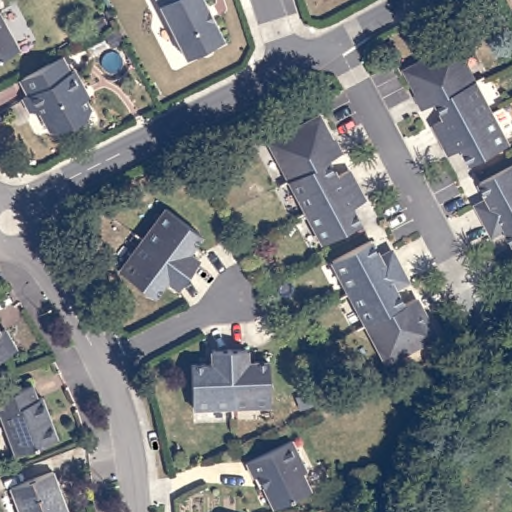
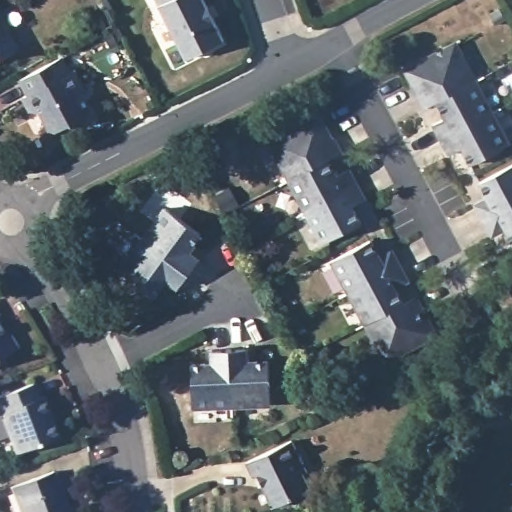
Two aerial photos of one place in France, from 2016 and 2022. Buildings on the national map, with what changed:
unchanged [(187,59),(156,0),(204,0),(225,39),(187,59)]
unchanged [(0,60),(0,18),(17,50),(0,60)]
unchanged [(420,98),(423,96),(411,74),(462,48),(481,85),(442,106),(428,113),(420,98)]
unchanged [(59,58),(67,73),(71,71),(81,89),(77,91),(83,101),(86,108),(84,116),(81,118),(79,120),(69,125),(65,124),(63,125),(52,131),(47,130),(37,113),(27,112),(20,99),(27,95),(18,80),(59,58)]
unchanged [(481,85),(497,117),(446,144),(438,130),(451,123),(442,106),(481,85)]
unchanged [(497,117),(512,145),(512,150),(475,169),(467,153),(454,159),(446,144),(497,117)]
unchanged [(273,145),(323,120),(334,143),(337,141),(344,155),(344,158),(332,164),(293,184),(273,145)]
unchanged [(332,164),(340,179),(353,172),(361,189),(309,215),(293,184),(332,164)]
unchanged [(481,204),(493,198),(484,182),(512,168),(512,207),(488,219),(481,204)]
unchanged [(361,189),(369,204),(356,210),(365,227),(334,242),(326,247),(309,215),(361,189)]
unchanged [(512,207),(512,234),(509,229),(497,235),(488,219),(512,207)]
unchanged [(169,208),(204,235),(192,251),(202,259),(192,272),(147,239),(169,208)]
unchanged [(192,272),(181,287),(171,279),(158,297),(122,270),(147,239),(192,272)]
unchanged [(330,264),(369,244),(377,259),(390,253),(398,269),(377,280),(347,297),(330,264)]
unchanged [(377,280),(398,269),(406,284),(394,291),(403,308),(364,329),(347,297),(377,280)]
unchanged [(403,308),(414,302),(422,317),(419,318),(424,329),(428,329),(434,341),(383,367),(364,329),(403,308)]
unchanged [(15,349),(0,358),(0,331),(4,329),(15,349)]
unchanged [(246,352),(246,366),(267,364),(269,409),(231,411),(229,353),(246,352)]
unchanged [(231,411),(193,412),(191,369),(212,368),(211,354),(229,353),(231,411)]
unchanged [(36,399),(40,398),(56,439),(15,454),(0,414),(0,395),(30,384),(36,399)]
unchanged [(293,440),(307,469),(302,471),(311,489),(272,507),(257,474),(253,476),(247,462),(293,440)]
unchanged [(52,472),(67,512),(20,512),(10,487),(52,472)]

